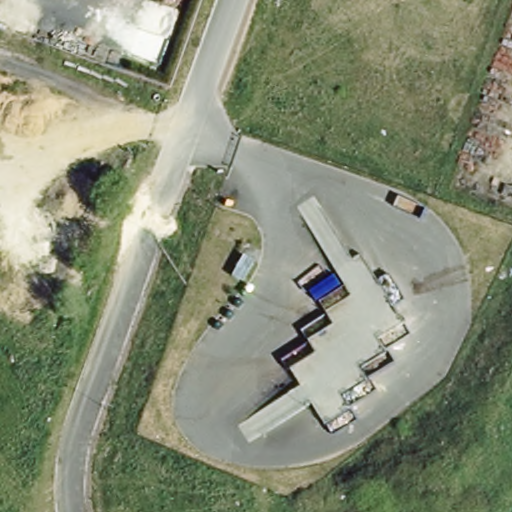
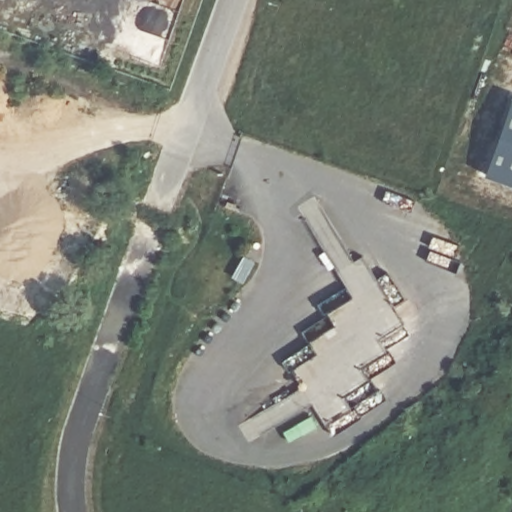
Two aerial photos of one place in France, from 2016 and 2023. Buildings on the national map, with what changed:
new [(512,98),(512,186),(485,176),(512,98)]

